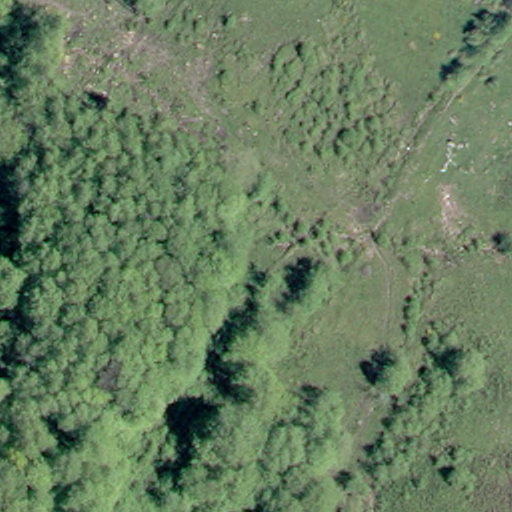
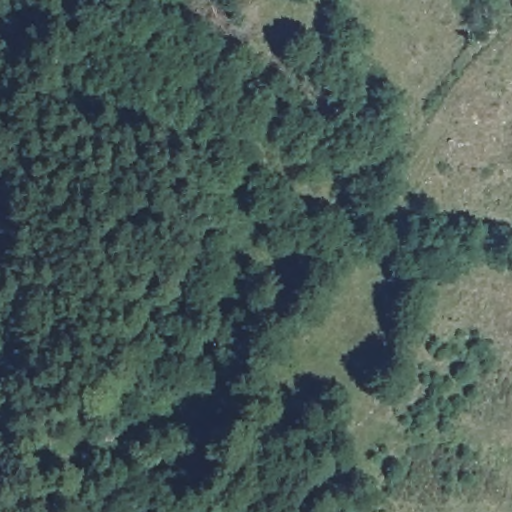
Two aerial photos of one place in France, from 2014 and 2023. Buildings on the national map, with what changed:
[]

